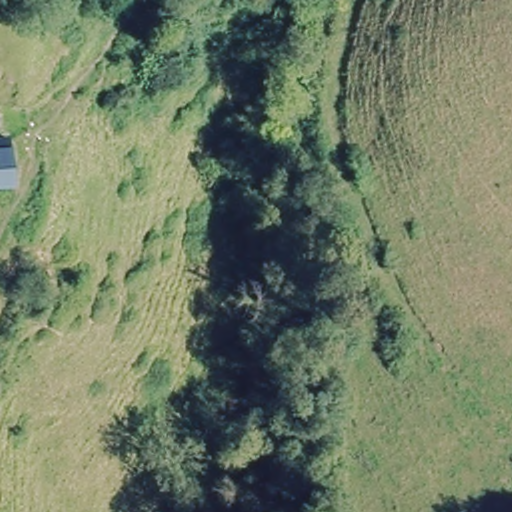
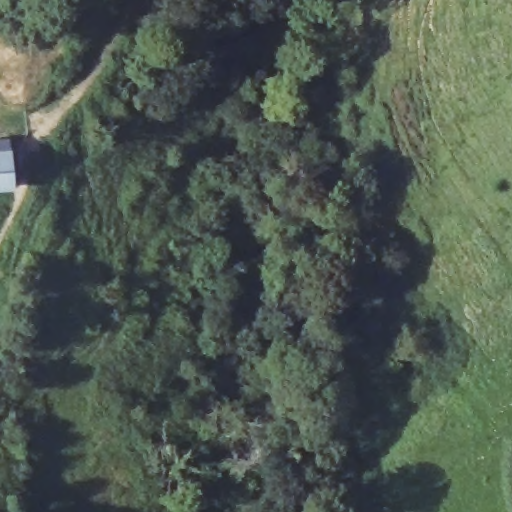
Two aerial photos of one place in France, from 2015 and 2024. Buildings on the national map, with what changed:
unchanged [(11,161),(14,186),(0,188),(0,146),(10,146),(20,146),(22,160),(11,161)]

